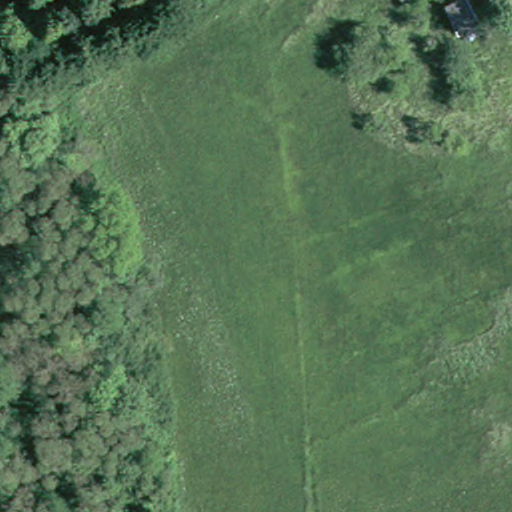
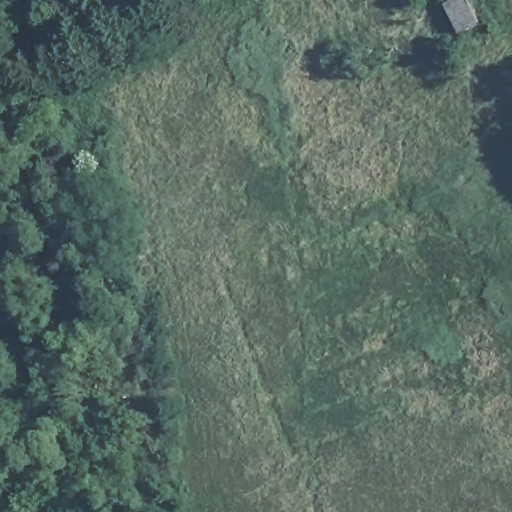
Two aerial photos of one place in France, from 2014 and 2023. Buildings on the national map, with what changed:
unchanged [(393,0),(405,0),(395,4),(393,0)]
unchanged [(471,1),(483,30),(465,38),(452,8),(471,1)]

